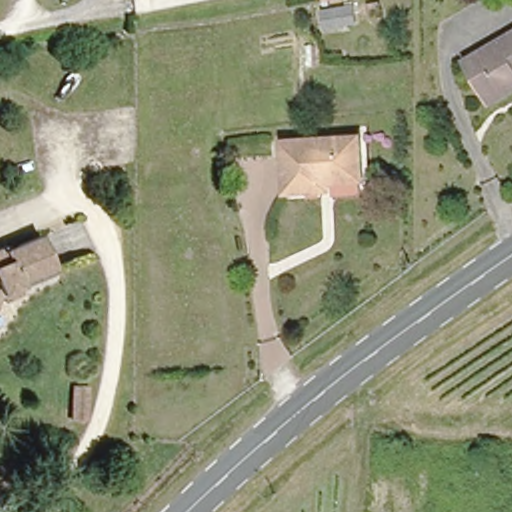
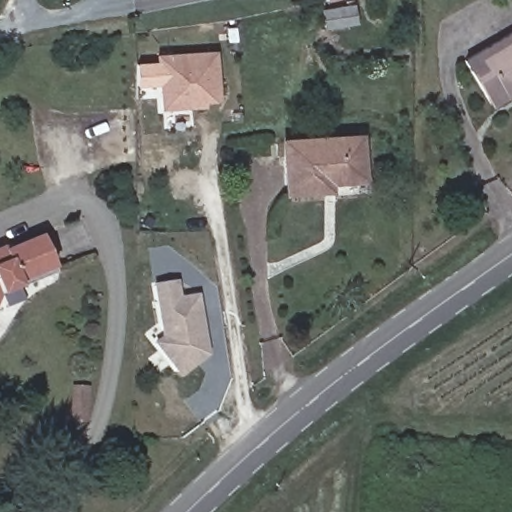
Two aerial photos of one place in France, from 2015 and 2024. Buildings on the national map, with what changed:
unchanged [(329,27),(323,29),(319,11),(328,10),(352,6),(354,24),(329,27)]
unchanged [(483,97),(461,60),(512,28),(512,91),(503,96),(488,105),(483,97)]
new [(219,52),(223,99),(207,100),(208,105),(166,108),(161,56),(219,52)]
unchanged [(335,182),(322,183),(322,191),(289,192),(287,142),(335,140),(362,139),(363,182),(335,182)]
unchanged [(52,265),(17,280),(19,283),(0,291),(0,245),(2,244),(4,247),(39,233),(52,265)]
new [(203,362),(187,374),(177,372),(158,346),(165,340),(159,288),(179,285),(182,302),(200,300),(208,353),(209,358),(203,362)]
unchanged [(84,386),(84,422),(69,421),(70,386),(84,386)]

